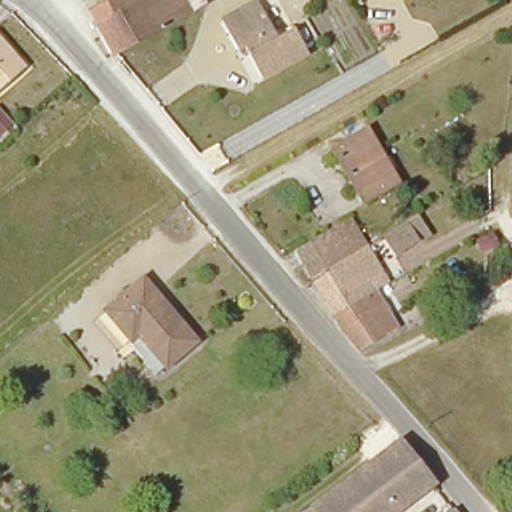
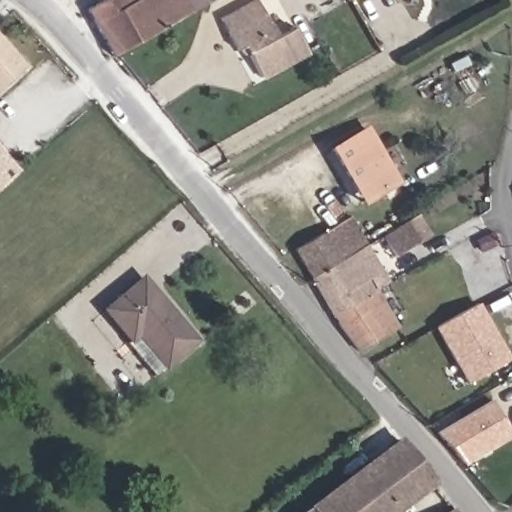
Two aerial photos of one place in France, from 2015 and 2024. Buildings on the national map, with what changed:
unchanged [(110,0),(140,0),(141,2),(145,0),(217,0),(194,12),(156,35),(158,39),(115,62),(111,57),(87,14),(110,0)]
unchanged [(264,79),(245,48),(240,51),(222,21),(254,2),(272,34),(280,30),(284,37),(293,32),(306,55),(264,79)]
unchanged [(0,86),(0,36),(25,65),(0,86)]
unchanged [(355,192),(330,149),(364,131),(394,184),(371,197),(361,203),(355,192)]
new [(12,170),(1,179),(5,183),(0,187),(0,155),(12,170)]
unchanged [(352,221),(367,247),(341,261),(324,233),(349,218),(352,221)]
unchanged [(419,244),(398,256),(387,235),(408,222),(419,244)]
unchanged [(324,233),(341,261),(313,279),(296,249),(324,233)]
unchanged [(390,287),(380,293),(334,320),(313,279),(341,261),(367,247),(390,287)]
unchanged [(141,283),(194,347),(164,372),(136,340),(129,346),(104,315),(141,283)]
unchanged [(399,326),(359,349),(334,320),(380,293),(399,326)]
new [(511,359),(467,385),(434,328),(478,303),(511,359)]
new [(434,433),(491,401),(512,436),(512,437),(461,467),(434,433)]
unchanged [(439,483),(397,512),(305,512),(404,440),(439,483)]

